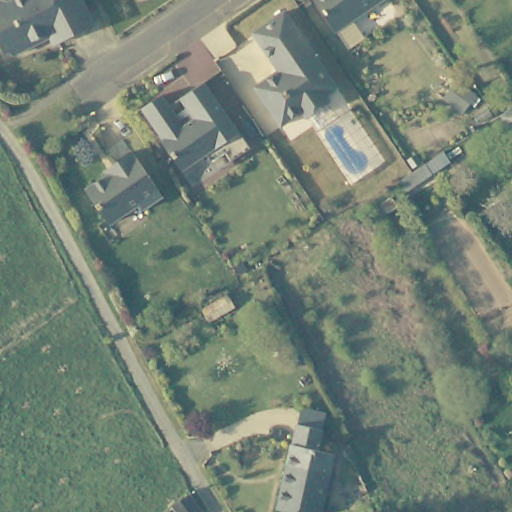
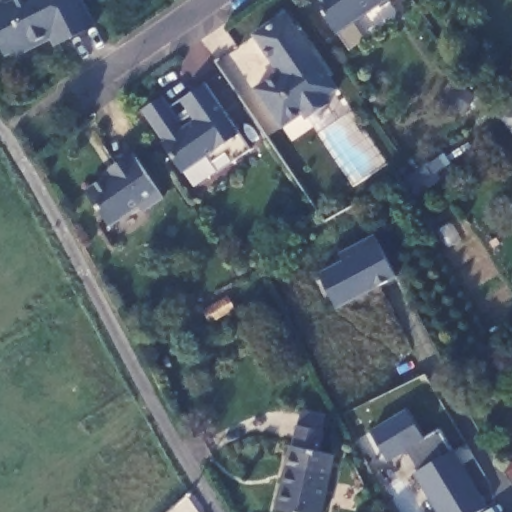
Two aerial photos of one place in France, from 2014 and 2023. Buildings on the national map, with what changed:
unchanged [(6,56),(0,44),(0,4),(3,2),(10,5),(20,0),(80,0),(94,27),(54,47),(48,35),(30,45),(32,49),(14,57),(8,55),(6,56)]
unchanged [(312,0),(384,0),(336,33),(312,0)]
unchanged [(330,77),(318,86),(329,103),(308,118),(303,111),(282,126),(255,89),(279,71),(281,64),(277,60),(273,63),(253,34),(284,12),(330,77)]
unchanged [(231,162),(224,153),(210,162),(205,156),(181,172),(161,141),(163,140),(141,109),(162,95),(179,120),(190,114),(180,99),(205,82),(250,150),(231,162)]
unchanged [(511,106),(512,106),(512,133),(501,119),(511,106)]
unchanged [(164,194),(144,207),(141,201),(115,219),(107,217),(86,187),(120,164),(116,160),(133,149),(164,194)]
new [(318,272),(342,260),(340,252),(374,235),(378,242),(397,276),(337,307),(318,272)]
new [(485,508),(478,512),(435,512),(413,473),(419,470),(408,450),(387,462),(368,433),(406,409),(425,437),(437,430),(453,450),(485,508)]
unchanged [(291,419),(316,424),(311,445),(328,448),(314,512),(307,512),(273,505),(291,419)]
unchanged [(203,512),(179,512),(174,506),(191,492),(204,511),(203,512)]

